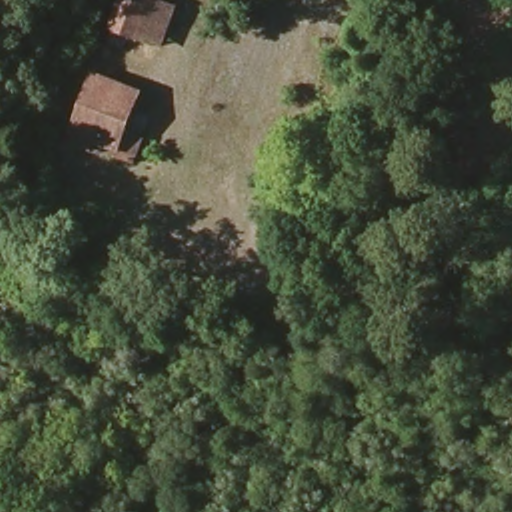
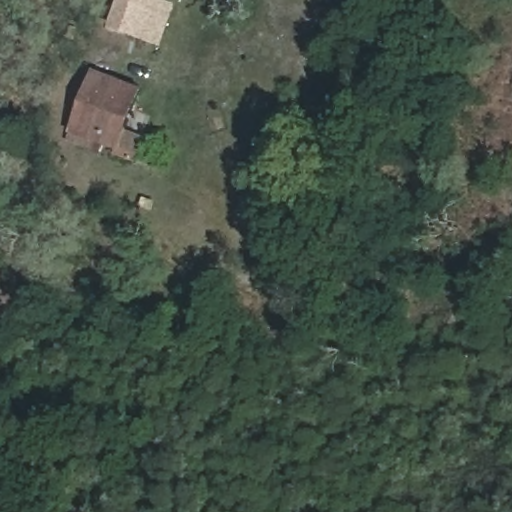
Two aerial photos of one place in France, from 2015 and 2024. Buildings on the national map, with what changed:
unchanged [(115,0),(158,0),(177,7),(164,49),(104,31),(115,0)]
unchanged [(85,74),(139,92),(116,153),(64,134),(85,74)]

